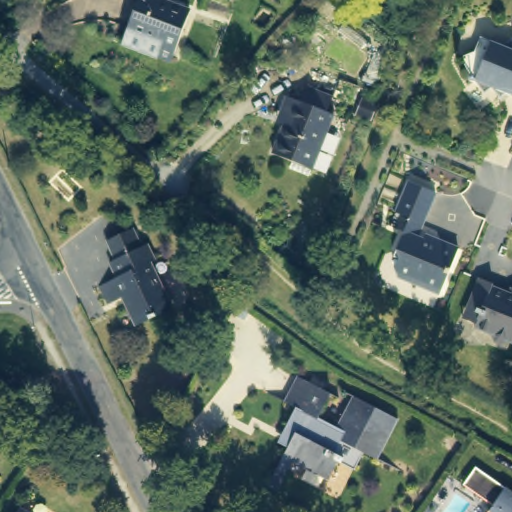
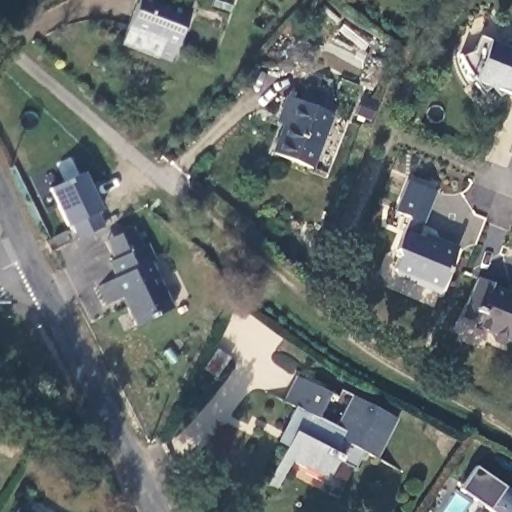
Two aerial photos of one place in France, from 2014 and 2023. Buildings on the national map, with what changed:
unchanged [(191,7),(172,58),(123,40),(139,0),(172,0),(191,7)]
unchanged [(506,92),(500,97),(493,87),(485,91),(475,79),(472,80),(470,79),(469,76),(469,73),(469,71),(465,66),(465,65),(461,57),(474,51),(480,36),(500,44),(512,40),(512,95),(506,92)]
unchanged [(300,101),(306,85),(332,95),(326,111),(333,114),(312,168),(273,152),(285,123),(278,120),(282,111),(287,96),(300,101)]
unchanged [(377,122),(374,130),(360,125),(366,109),(370,110),(380,114),(377,122)]
new [(85,171),(102,210),(106,225),(76,240),(68,225),(51,190),(85,171)]
unchanged [(400,258),(398,251),(411,219),(398,212),(409,182),(438,192),(419,238),(435,245),(442,241),(459,247),(441,294),(398,277),(395,270),(400,258)]
unchanged [(100,283),(111,279),(118,275),(111,260),(116,256),(108,238),(135,226),(143,244),(148,241),(156,257),(152,260),(174,305),(136,323),(123,295),(119,296),(108,301),(100,283)]
unchanged [(506,346),(500,345),(495,335),(479,329),(480,325),(466,320),(470,307),(482,280),(495,286),(497,290),(510,295),(512,288),(512,344),(506,346)]
unchanged [(362,453),(355,470),(338,462),(343,455),(328,479),(292,463),(276,490),(264,484),(290,434),(282,430),(293,407),(282,401),(298,367),(334,386),(323,411),(338,418),(353,388),(399,413),(380,451),(376,460),(362,453)]
unchanged [(512,490),(512,512),(483,512),(490,502),(462,483),(475,465),(512,490)]
unchanged [(17,512),(21,505),(31,512),(17,512)]

